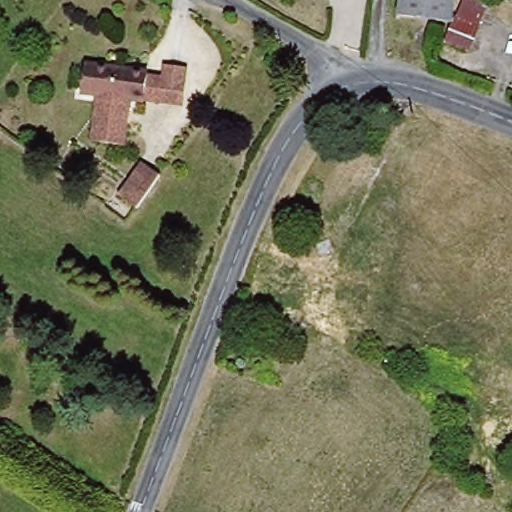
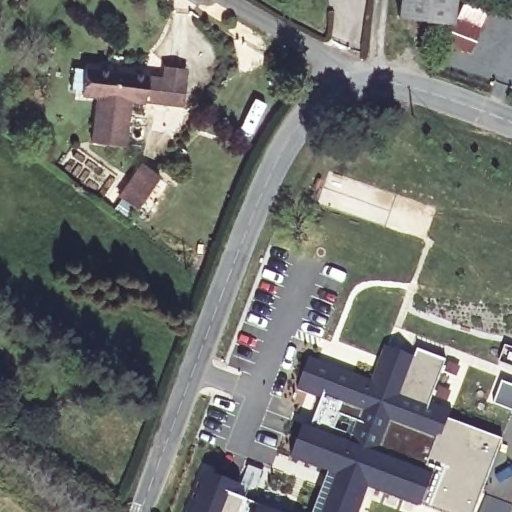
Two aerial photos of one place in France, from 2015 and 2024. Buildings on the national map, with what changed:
unchanged [(457,17),(403,10),(404,0),(459,0),(457,17)]
unchanged [(451,37),(460,14),(482,22),(473,44),(451,37)]
unchanged [(87,94),(90,64),(151,69),(150,76),(169,78),(170,65),(190,67),(188,81),(190,81),(187,102),(149,98),(148,100),(134,99),(130,145),(98,141),(100,117),(102,95),(87,94)]
unchanged [(137,205),(120,193),(142,161),(160,173),(137,205)]
demolished [(293,248),(270,239),(275,226),(298,235),(293,248)]
demolished [(265,293),(257,291),(267,251),(317,264),(307,304),(288,299),(285,310),(262,304),(265,293)]
demolished [(377,277),(355,322),(335,311),(356,266),(377,277)]
new [(383,346),(413,356),(416,349),(444,360),(430,403),(451,410),(447,418),(501,440),(475,512),(439,512),(370,486),(361,512),(321,512),(335,475),(292,458),(303,425),(310,428),(322,396),(298,389),(310,357),(373,378),(383,346)]
demolished [(512,365),(512,387),(510,365),(512,365)]
demolished [(512,408),(506,407),(512,457),(500,458),(500,462),(492,463),(491,459),(488,435),(477,437),(477,432),(461,429),(487,389),(512,387),(512,408)]
new [(240,485),(236,496),(278,512),(192,512),(206,473),(240,485)]
demolished [(512,489),(512,504),(508,490),(512,489)]
new [(512,505),(509,512),(480,512),(486,495),(512,505)]

